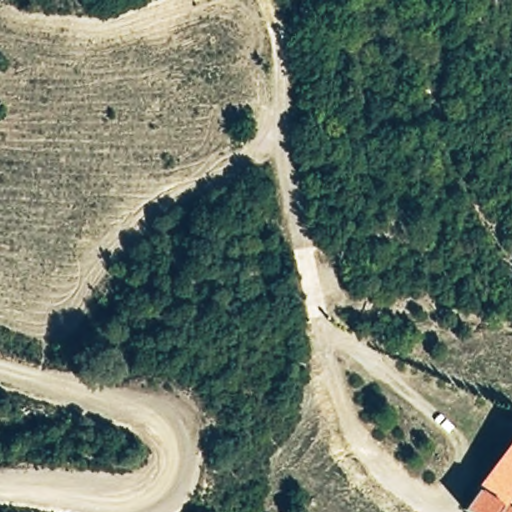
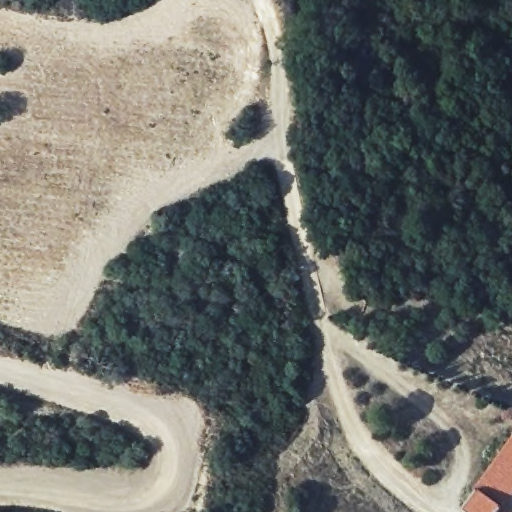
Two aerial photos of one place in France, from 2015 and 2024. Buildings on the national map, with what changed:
unchanged [(460,510),(472,495),(465,490),(512,431),(512,489),(507,496),(512,500),(512,512),(463,512),(460,510)]

